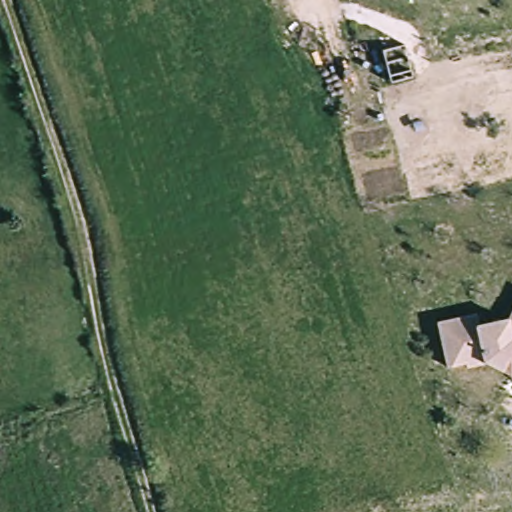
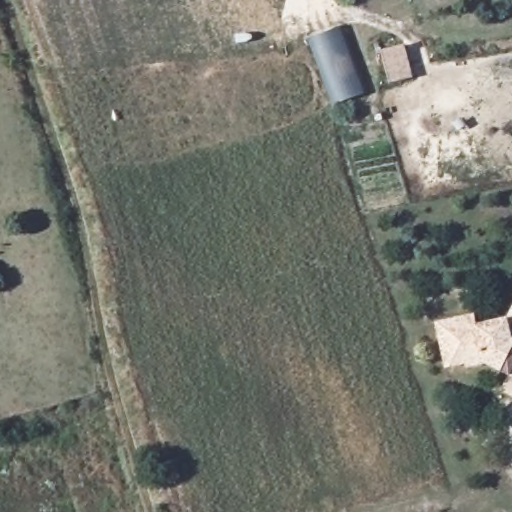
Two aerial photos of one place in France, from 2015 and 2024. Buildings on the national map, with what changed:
new [(341,27),(368,95),(336,107),(310,39),(341,27)]
new [(404,46),(413,79),(390,85),(383,51),(404,46)]
unchanged [(475,366),(474,362),(455,367),(444,323),(481,314),(484,325),(512,318),(512,372),(492,362),(475,366)]

